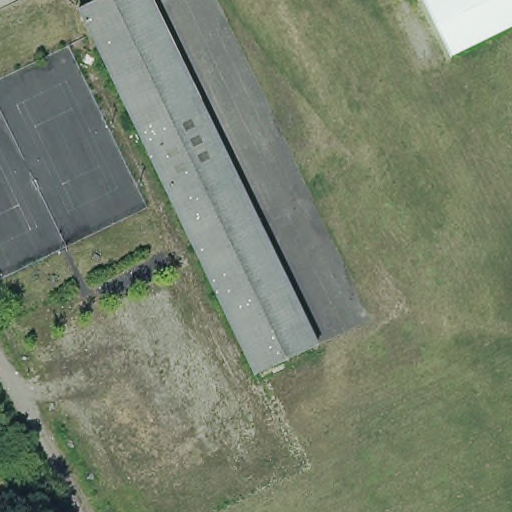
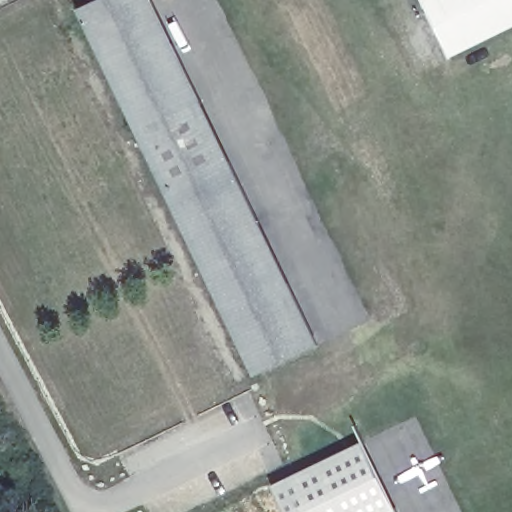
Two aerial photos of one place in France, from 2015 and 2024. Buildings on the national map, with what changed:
unchanged [(93,0),(159,0),(320,345),(251,377),(78,7),(93,0)]
unchanged [(452,56),(425,0),(512,0),(512,27),(452,56)]
new [(390,512),(286,512),(273,484),(365,441),(397,509),(390,512)]

